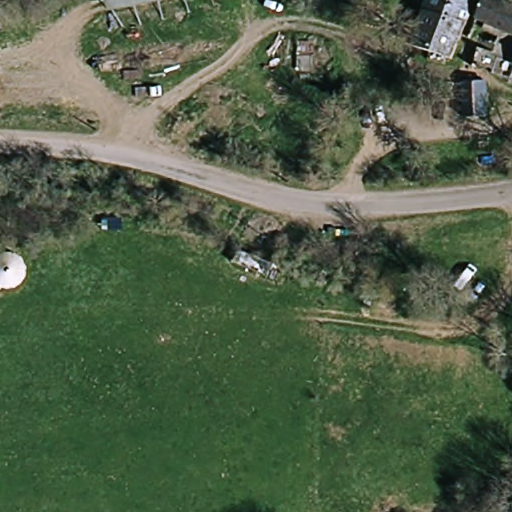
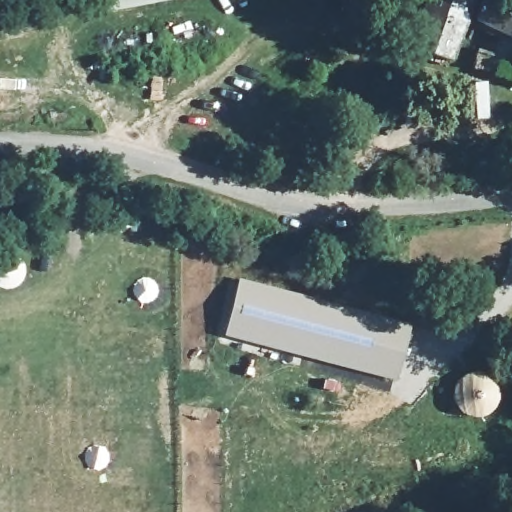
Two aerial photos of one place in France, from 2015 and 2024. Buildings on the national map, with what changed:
unchanged [(123,30),(118,0),(218,0),(221,13),(123,30)]
unchanged [(405,42),(409,29),(418,3),(419,0),(467,0),(465,5),(458,23),(444,57),(436,55),(432,72),(425,69),(427,51),(405,42)]
unchanged [(468,20),(476,0),(498,0),(512,8),(512,39),(468,20)]
unchanged [(473,47),(512,60),(512,65),(507,81),(468,67),(473,47)]
unchanged [(465,87),(488,89),(484,124),(467,123),(462,119),(461,109),(465,87)]
new [(397,380),(225,335),(240,278),(412,324),(397,380)]

